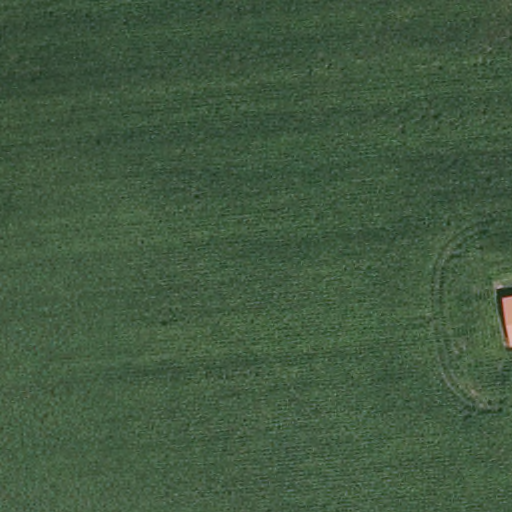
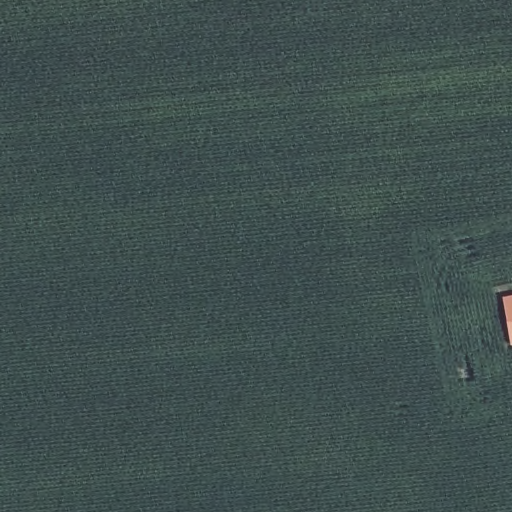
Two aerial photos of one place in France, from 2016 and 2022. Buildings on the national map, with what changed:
unchanged [(511,343),(503,298),(512,296),(512,343),(511,343)]

